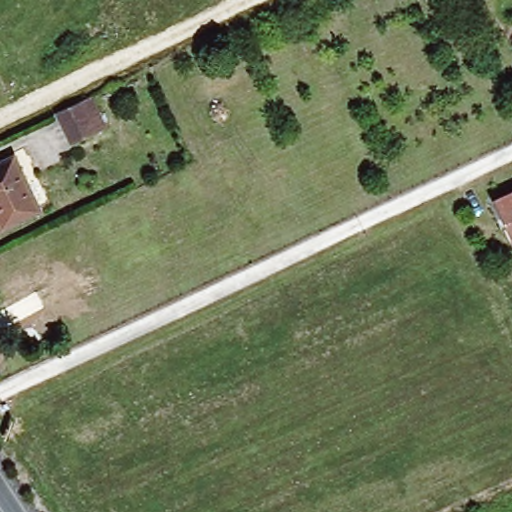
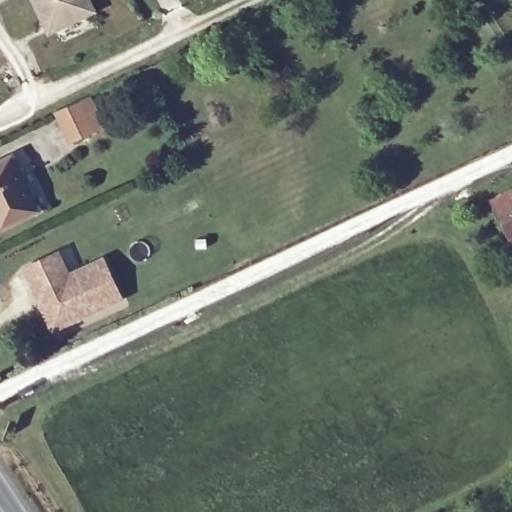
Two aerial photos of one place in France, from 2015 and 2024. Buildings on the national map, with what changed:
new [(97,12),(48,36),(32,0),(92,0),(97,12)]
unchanged [(54,108),(80,96),(89,92),(104,124),(95,127),(70,139),(54,108)]
unchanged [(11,152),(37,207),(0,225),(0,158),(11,152)]
unchanged [(512,236),(494,197),(512,189),(512,236)]
new [(125,301),(51,334),(22,268),(60,250),(70,271),(105,255),(125,301)]

